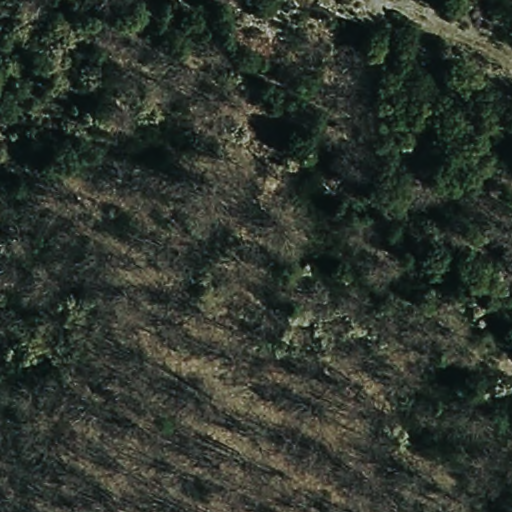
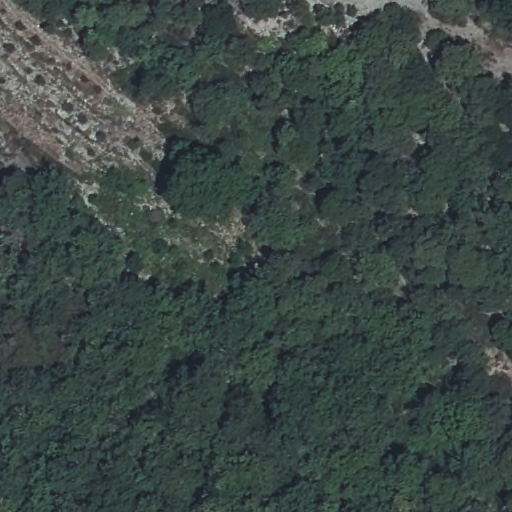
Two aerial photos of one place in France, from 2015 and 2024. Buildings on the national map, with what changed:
[]

